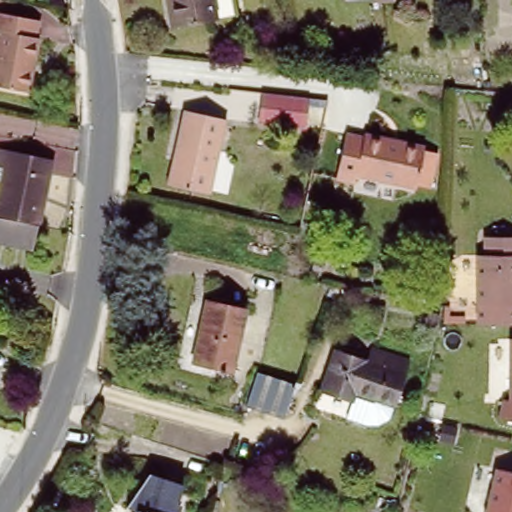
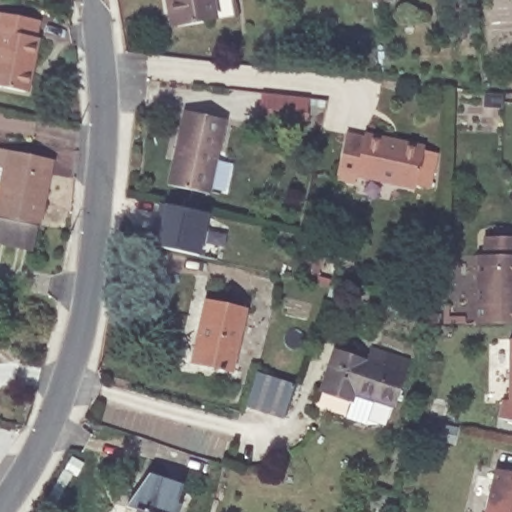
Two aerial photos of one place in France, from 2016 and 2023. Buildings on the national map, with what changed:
unchanged [(167,0),(174,0),(212,0),(215,20),(177,25),(172,26),(167,0)]
unchanged [(372,3),(372,0),(393,0),(372,3)]
unchanged [(23,91),(0,86),(0,13),(38,20),(35,38),(38,39),(33,64),(28,92),(23,91)]
unchanged [(307,99),(304,128),(262,123),(265,94),(307,99)]
unchanged [(182,111),(225,120),(217,160),(173,152),(182,111)]
unchanged [(356,131),(375,135),(374,140),(432,152),(425,190),(366,176),(365,181),(364,184),(345,180),(345,178),(356,131)]
unchanged [(0,217),(0,187),(5,163),(0,162),(0,148),(52,159),(38,225),(0,217)]
unchanged [(217,160),(210,194),(167,185),(173,152),(217,160)]
new [(157,245),(165,204),(210,214),(201,255),(157,245)]
unchanged [(33,249),(0,241),(0,217),(38,225),(33,249)]
unchanged [(480,256),(480,236),(512,236),(512,323),(473,325),(472,257),(480,256)]
unchanged [(330,241),(323,266),(312,263),(319,239),(330,241)]
unchanged [(205,301),(245,310),(230,371),(191,362),(204,305),(205,301)]
unchanged [(507,393),(507,338),(512,338),(512,421),(497,418),(502,392),(507,393)]
unchanged [(394,407),(353,395),(350,402),(320,392),(333,351),(365,361),(370,350),(408,362),(394,407)]
unchanged [(283,417),(245,405),(256,373),(293,385),(283,417)]
unchanged [(512,469),(512,512),(483,512),(493,465),(512,469)]
unchanged [(182,486),(177,503),(180,505),(178,512),(134,512),(135,510),(126,506),(148,474),(182,486)]

